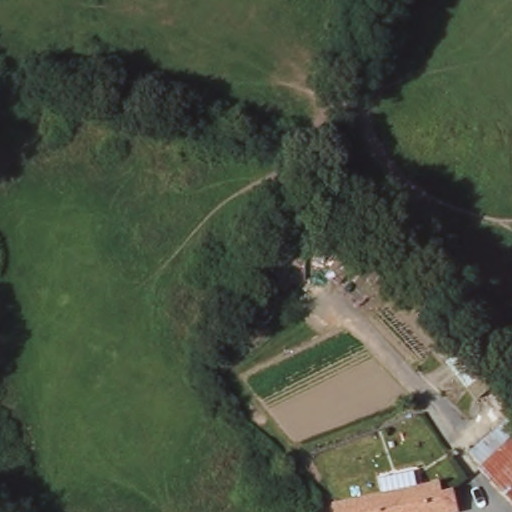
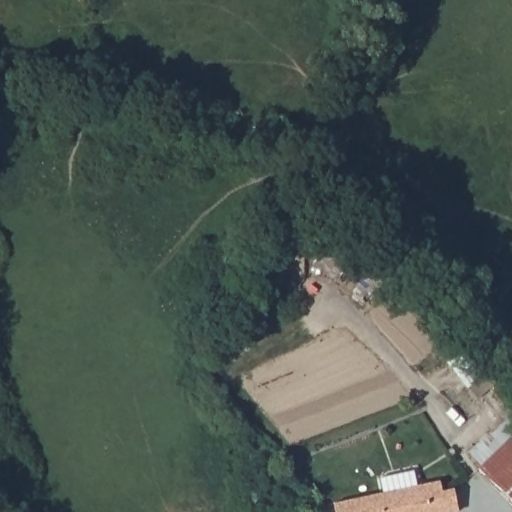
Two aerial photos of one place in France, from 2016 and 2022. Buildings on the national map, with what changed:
unchanged [(512,437),(512,471),(492,486),(475,467),(512,437)]
unchanged [(512,471),(512,507),(492,486),(512,471)]
unchanged [(442,493),(454,491),(457,510),(451,512),(373,512),(370,499),(433,485),(440,483),(442,493)]
unchanged [(370,499),(373,512),(334,512),(333,507),(370,499)]

